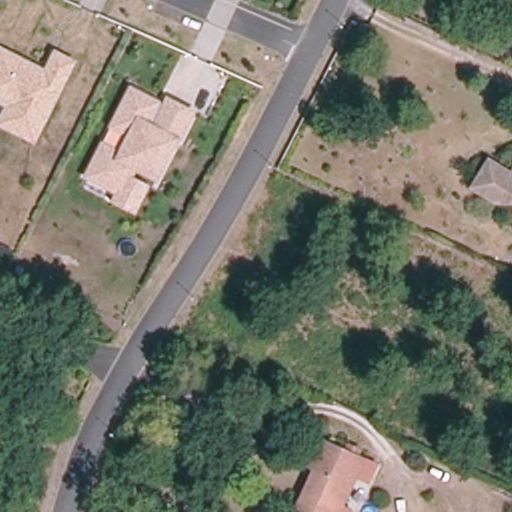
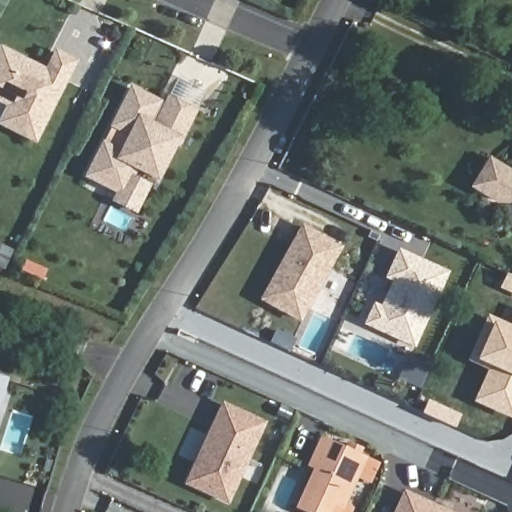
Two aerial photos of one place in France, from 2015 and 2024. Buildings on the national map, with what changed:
unchanged [(79,58),(35,145),(0,126),(0,121),(6,107),(0,103),(0,46),(0,45),(45,66),(54,47),(79,58)]
unchanged [(168,92),(200,108),(181,148),(176,145),(158,180),(137,169),(133,175),(153,185),(137,214),(111,201),(116,193),(83,177),(102,141),(118,149),(126,134),(109,126),(130,84),(163,102),(168,92)]
unchanged [(491,202),(475,193),(467,189),(471,182),(478,170),(482,162),(489,167),(505,175),(512,163),(512,202),(491,202)]
new [(335,244),(296,322),(250,301),(295,224),(335,244)]
new [(445,273),(412,344),(365,323),(373,304),(382,310),(394,280),(387,276),(400,251),(445,273)]
new [(472,401),(488,366),(467,357),(486,314),(511,326),(512,324),(512,419),(472,401)]
new [(0,402),(0,375),(8,378),(0,402)]
new [(228,504),(184,483),(221,402),(266,421),(228,504)]
unchanged [(344,505),(341,512),(319,512),(296,502),(314,463),(307,460),(318,436),(358,454),(336,501),(344,505)]
new [(397,512),(405,494),(444,512),(397,512)]

